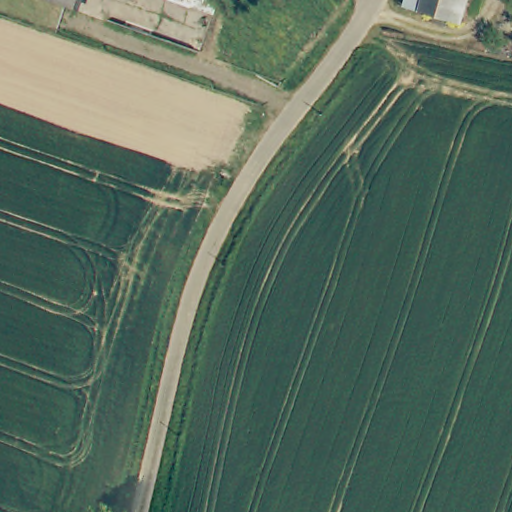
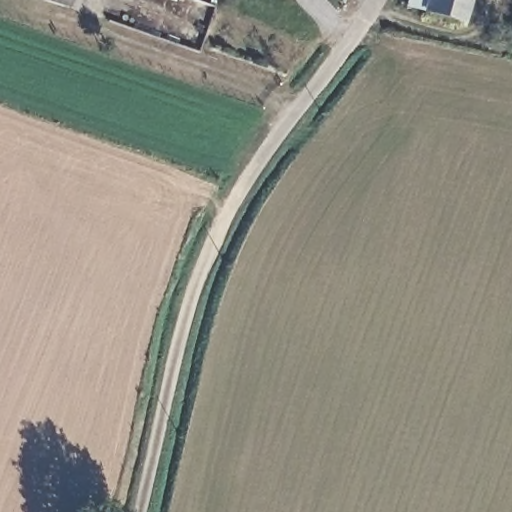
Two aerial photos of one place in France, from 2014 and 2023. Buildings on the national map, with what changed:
unchanged [(47,0),(73,0),(70,9),(47,0)]
unchanged [(470,0),(464,24),(426,15),(406,10),(409,0),(470,0)]

